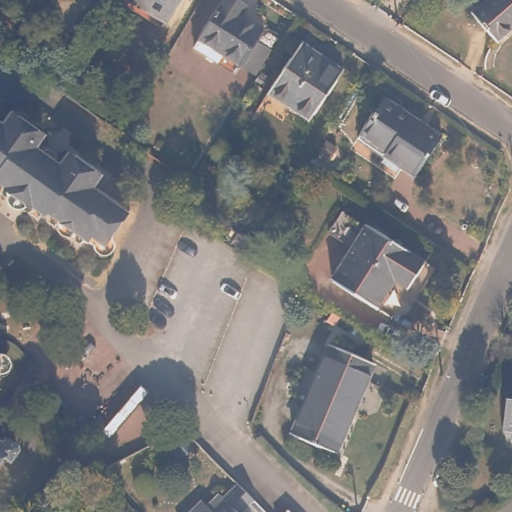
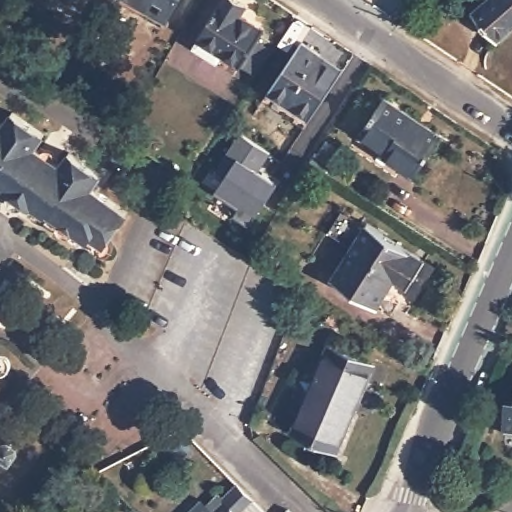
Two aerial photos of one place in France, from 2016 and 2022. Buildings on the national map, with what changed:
unchanged [(148,11),(129,0),(178,0),(171,11),(166,21),(148,11)]
unchanged [(241,10),(265,24),(244,59),(222,46),(217,55),(197,43),(202,34),(201,34),(221,0),(246,0),(241,10)]
unchanged [(470,14),(487,0),(512,0),(512,28),(494,43),(470,14)]
unchanged [(345,68),(316,117),(271,89),(300,41),(345,68)]
unchanged [(441,134),(415,174),(357,136),(383,96),(441,134)]
unchanged [(4,188),(5,185),(0,181),(0,121),(5,124),(14,112),(46,135),(37,147),(62,165),(71,152),(102,174),(94,188),(129,213),(105,245),(92,236),(89,241),(50,212),(47,216),(34,205),(32,208),(26,203),(10,193),(4,188)]
new [(224,175),(212,167),(240,133),(269,153),(256,168),(276,181),(255,213),(248,225),(231,215),(237,207),(213,192),(216,186),(224,175)]
unchanged [(427,265),(410,292),(398,284),(380,312),(333,282),(370,227),(427,265)]
unchanged [(332,339),(377,359),(351,417),(311,385),(332,339)]
unchanged [(351,417),(336,451),(290,430),(311,385),(351,417)]
unchanged [(511,394),(512,394),(512,430),(508,430),(511,394)]
unchanged [(3,443),(5,439),(10,438),(19,445),(19,450),(12,461),(5,456),(0,464),(0,440),(3,443)]
unchanged [(187,449),(174,462),(164,452),(177,439),(187,449)]
unchanged [(215,493),(219,497),(234,483),(250,499),(263,512),(207,512),(201,506),(215,493)]

